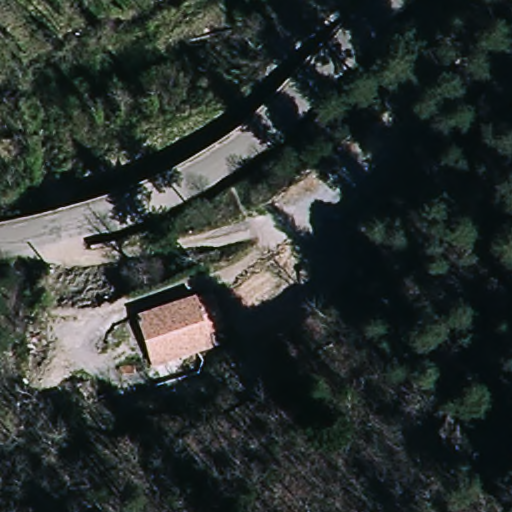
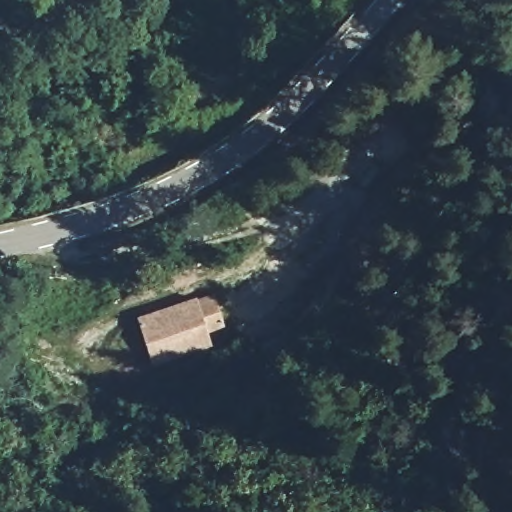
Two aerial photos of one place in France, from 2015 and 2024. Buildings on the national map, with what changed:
unchanged [(197,298),(214,292),(228,288),(237,319),(224,323),(230,342),(213,347),(154,368),(136,315),(196,295),(197,298)]

